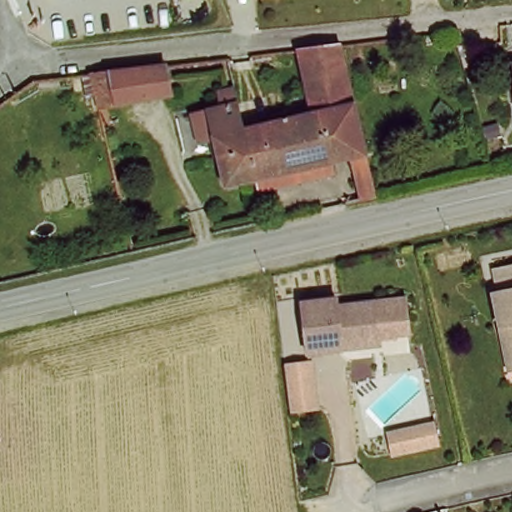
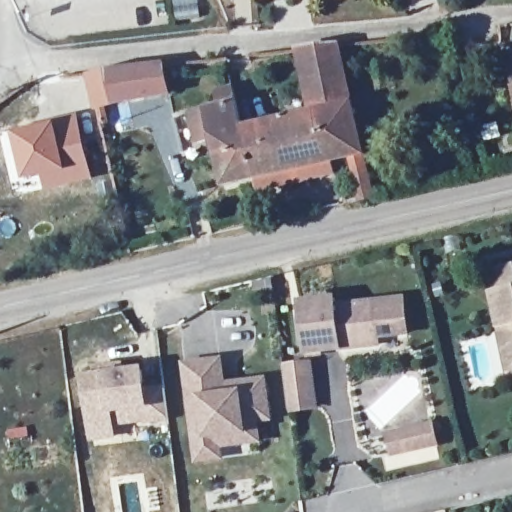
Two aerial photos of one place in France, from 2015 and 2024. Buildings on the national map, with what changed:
unchanged [(300,49),(337,44),(343,68),(352,104),(315,112),(300,49)]
unchanged [(95,125),(92,110),(86,77),(107,74),(162,64),(169,97),(112,106),(111,122),(95,125)]
unchanged [(213,135),(210,135),(213,145),(194,147),(188,112),(219,107),(217,92),(237,90),(243,127),(213,135)]
unchanged [(352,104),(352,109),(367,174),(372,197),(358,200),(347,156),(252,177),(249,166),(246,155),(240,130),(315,112),(352,104)]
new [(77,115),(92,177),(44,190),(41,176),(23,180),(12,133),(77,115)]
unchanged [(224,184),(213,135),(240,130),(246,155),(249,166),(252,177),(224,184)]
unchanged [(334,170),(335,182),(255,199),(253,181),(334,170)]
unchanged [(490,304),(497,302),(492,280),(499,278),(512,276),(512,378),(507,379),(496,337),(490,304)]
unchanged [(345,355),(311,357),(304,307),(338,303),(340,312),(405,302),(412,339),(382,342),(382,351),(345,355)]
new [(224,356),(227,383),(266,379),(273,422),(258,423),(261,443),(220,448),(222,461),(196,465),(182,363),(224,356)]
unchanged [(318,412),(287,415),(282,365),(313,361),(318,412)]
new [(94,373),(93,366),(125,362),(125,370),(145,367),(148,387),(164,387),(168,422),(115,427),(117,440),(92,443),(82,375),(94,373)]
unchanged [(432,421),(440,448),(389,458),(383,432),(432,421)]

